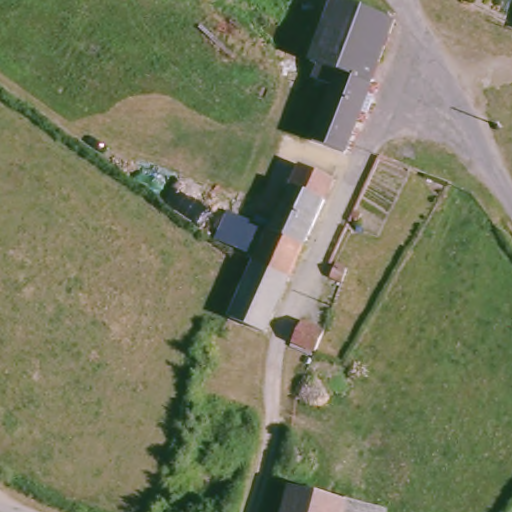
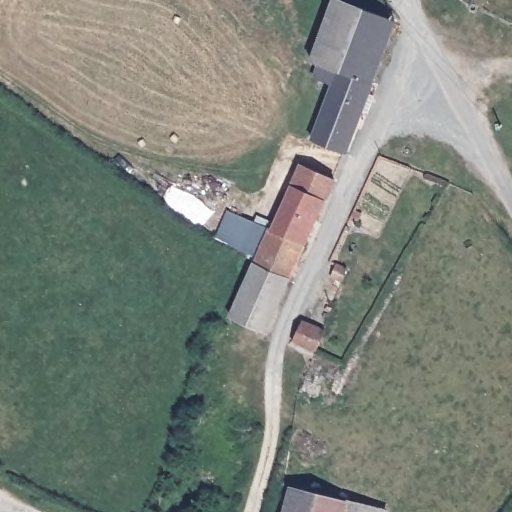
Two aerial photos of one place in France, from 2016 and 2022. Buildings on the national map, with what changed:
unchanged [(338,83),(321,76),(322,61),(315,59),(339,0),(348,0),(400,18),(363,130),(352,153),(317,137),(338,83)]
unchanged [(254,256),(267,227),(270,222),(273,221),(302,160),(335,172),(290,273),(254,256)]
unchanged [(267,227),(254,256),(215,236),(227,208),(267,227)]
unchanged [(230,310),(253,257),(254,256),(290,273),(267,326),(230,310)]
unchanged [(348,270),(343,282),(331,275),(335,263),(348,270)]
unchanged [(293,340),(302,321),(324,329),(316,350),(293,340)]
unchanged [(285,368),(292,347),(315,353),(314,354),(305,377),(285,368)]
unchanged [(295,494),(361,512),(291,512),(295,494)]

